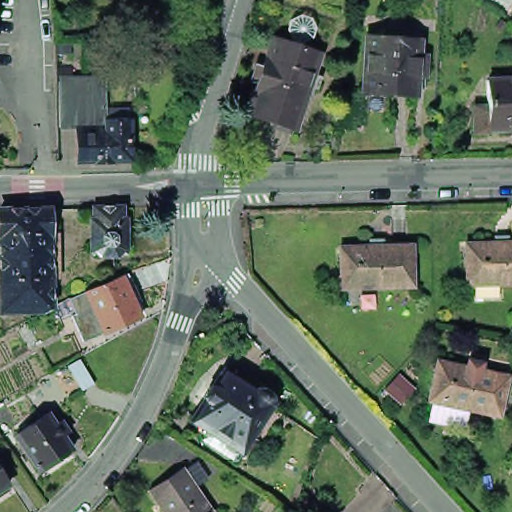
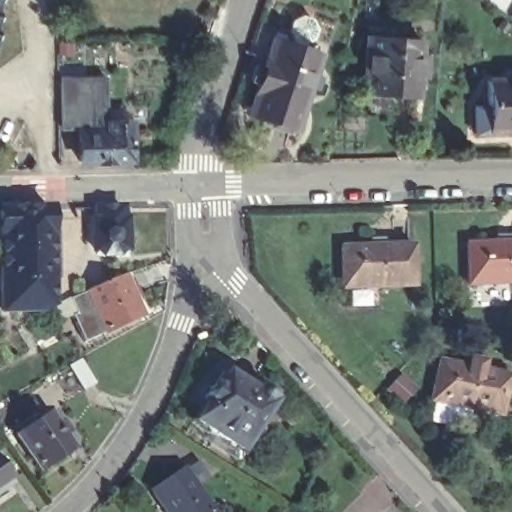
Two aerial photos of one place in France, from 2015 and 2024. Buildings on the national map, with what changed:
unchanged [(255,84),(247,81),(252,67),(260,70),(270,39),(287,45),(289,40),(283,30),(287,20),(296,16),(307,20),(312,30),(308,40),(299,43),(297,49),(315,55),(307,76),(315,79),(311,90),(304,88),(290,130),(245,115),(255,84)]
unchanged [(416,99),(364,95),(367,37),(420,40),(419,55),(427,55),(425,79),(417,79),(416,99)]
unchanged [(475,135),(474,108),(488,107),(487,82),(512,81),(512,131),(491,131),(491,135),(475,135)]
unchanged [(74,124),(74,130),(57,130),(57,84),(101,84),(102,124),(74,124)]
unchanged [(123,124),(124,162),(75,163),(74,130),(74,124),(102,124),(123,124)]
unchanged [(0,237),(0,213),(50,212),(50,237),(59,237),(60,282),(50,282),(51,310),(44,315),(4,313),(2,237),(0,237)]
unchanged [(122,229),(125,229),(125,257),(117,265),(102,265),(93,257),(93,229),(95,229),(95,216),(122,216),(122,229)]
unchanged [(469,286),(467,245),(496,245),(496,237),(509,237),(510,244),(512,244),(512,285),(469,286)]
unchanged [(343,293),(342,252),(370,251),(370,245),(384,245),(384,251),(413,251),(415,292),(343,293)]
unchanged [(128,272),(142,300),(134,304),(140,316),(105,330),(84,340),(72,312),(75,311),(69,298),(87,290),(121,275),(128,272)]
unchanged [(505,382),(498,421),(427,407),(434,367),(463,373),(465,367),(477,370),(477,376),(505,382)]
unchanged [(210,406),(207,405),(215,393),(218,395),(230,377),(260,397),(269,400),(275,404),(277,411),(245,460),(197,427),(210,406)]
unchanged [(58,425),(65,421),(72,431),(65,435),(74,448),(41,470),(16,433),(50,411),(58,425)]
unchanged [(164,512),(150,491),(180,471),(182,470),(185,475),(211,512),(164,512)]
unchanged [(0,471),(10,487),(0,494),(0,471)]

